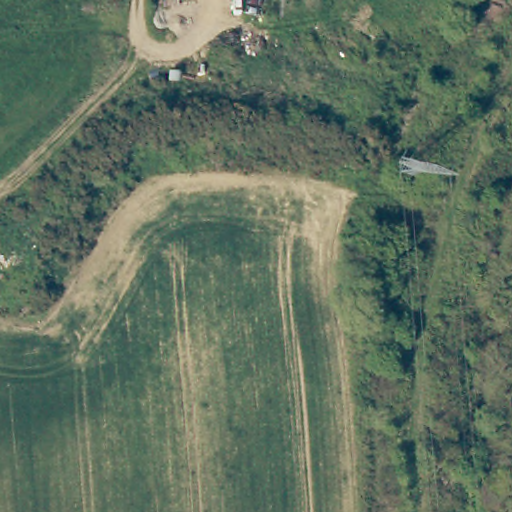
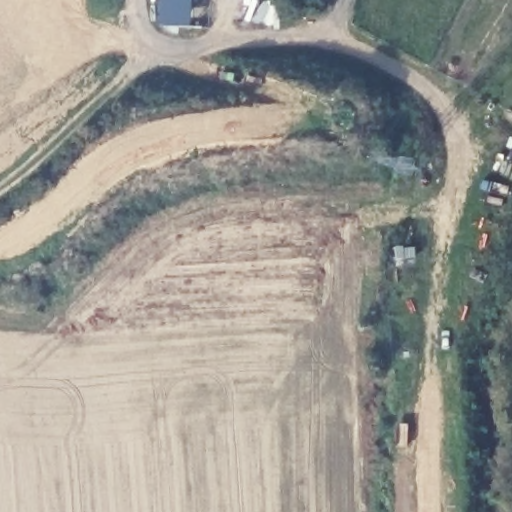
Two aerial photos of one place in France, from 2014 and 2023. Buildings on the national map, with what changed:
new [(192,27),(158,25),(159,0),(192,0),(192,27)]

